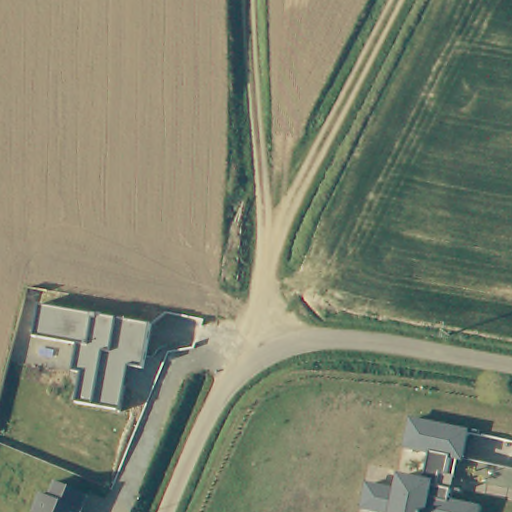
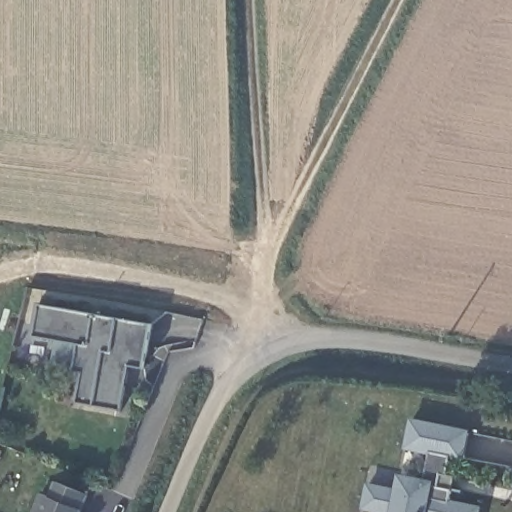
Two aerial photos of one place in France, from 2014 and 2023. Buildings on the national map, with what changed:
unchanged [(76,401),(83,372),(73,370),(77,344),(34,335),(40,305),(151,324),(144,367),(129,365),(120,410),(76,401)]
unchanged [(368,483),(396,490),(399,472),(426,477),(430,451),(405,446),(411,418),(469,430),(462,464),(459,463),(453,499),(480,505),(479,512),(382,512),(363,508),(368,483)]
unchanged [(52,497),(57,483),(89,495),(83,512),(40,512),(46,494),(52,497)]

